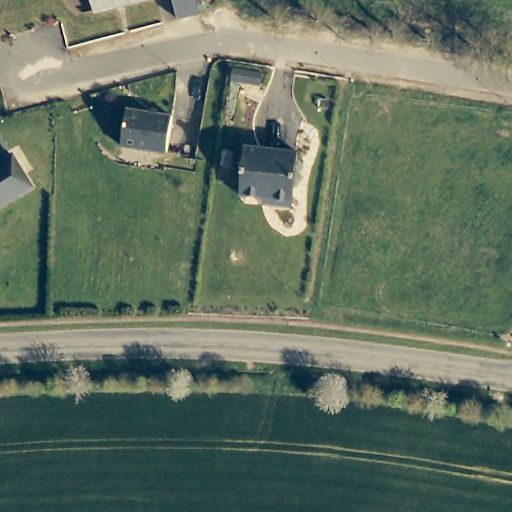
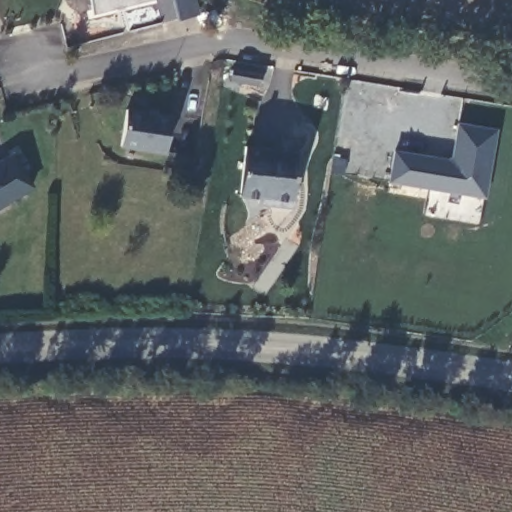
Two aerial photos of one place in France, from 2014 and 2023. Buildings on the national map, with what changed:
unchanged [(99,0),(149,0),(102,11),(99,0)]
unchanged [(179,0),(200,0),(204,14),(184,19),(179,0)]
unchanged [(124,146),(129,109),(173,115),(168,152),(124,146)]
new [(452,160),(458,123),(496,129),(484,196),(388,179),(395,151),(452,160)]
unchanged [(267,204),(267,198),(245,195),(250,146),(301,152),(295,207),(267,204)]
unchanged [(35,187),(0,209),(0,165),(16,155),(35,187)]

